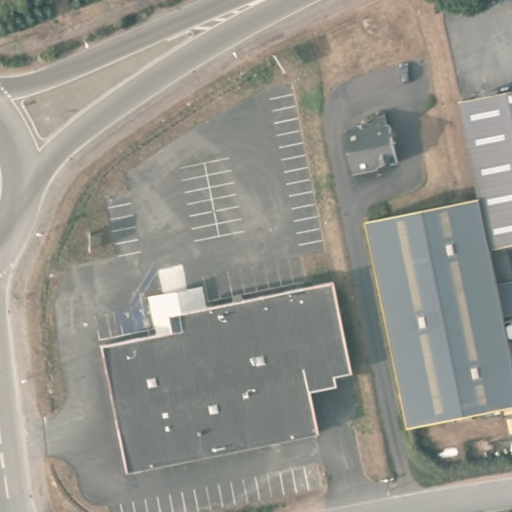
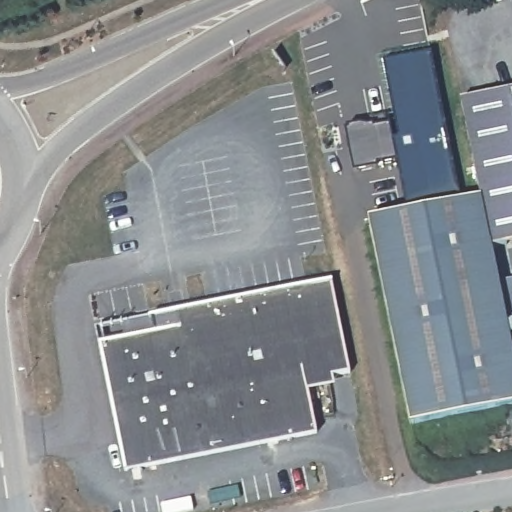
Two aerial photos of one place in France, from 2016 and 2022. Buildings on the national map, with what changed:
new [(403,156),(395,120),(392,121),(390,111),(379,59),(433,48),(462,197),(455,198),(408,207),(399,158),(403,156)]
unchanged [(480,193),(462,99),(512,89),(512,243),(490,248),(480,193)]
unchanged [(392,121),(395,120),(403,156),(383,161),(384,163),(358,168),(350,127),(351,124),(366,121),(370,122),(377,121),(376,114),(390,111),(392,121)]
unchanged [(455,198),(480,193),(490,248),(512,357),(512,401),(409,421),(368,215),(455,198)]
unchanged [(350,368),(307,377),(316,428),(126,467),(100,340),(155,330),(151,314),(206,303),(332,277),(350,368)]

